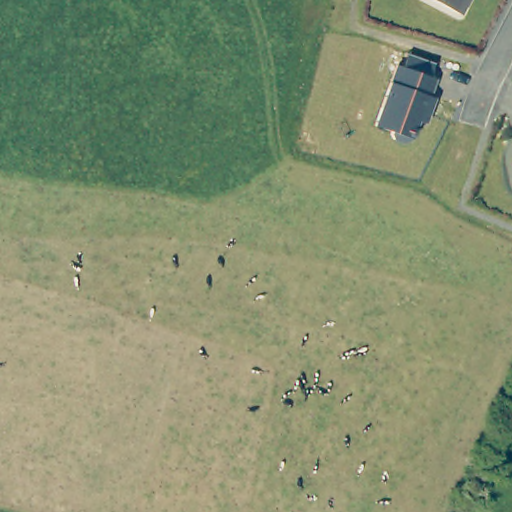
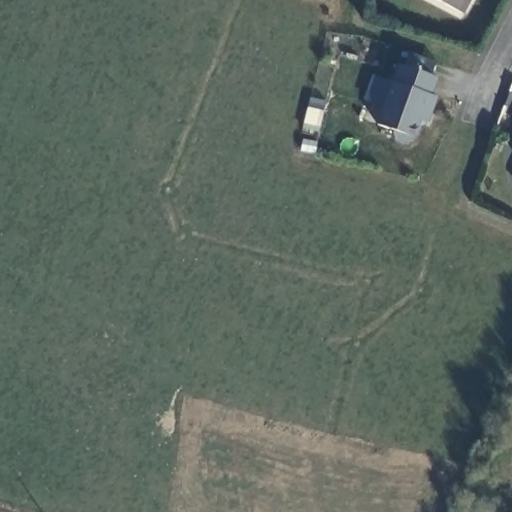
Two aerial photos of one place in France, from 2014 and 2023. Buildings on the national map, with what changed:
unchanged [(453,29),(411,9),(416,0),(467,0),(462,10),(453,29)]
unchanged [(433,64),(429,77),(435,80),(429,96),(433,98),(425,123),(419,121),(413,137),(402,142),(393,140),(390,131),(374,125),(396,66),(402,67),(406,54),(433,64)]

